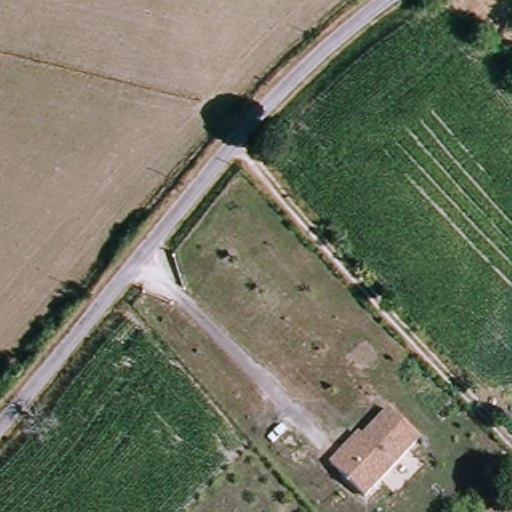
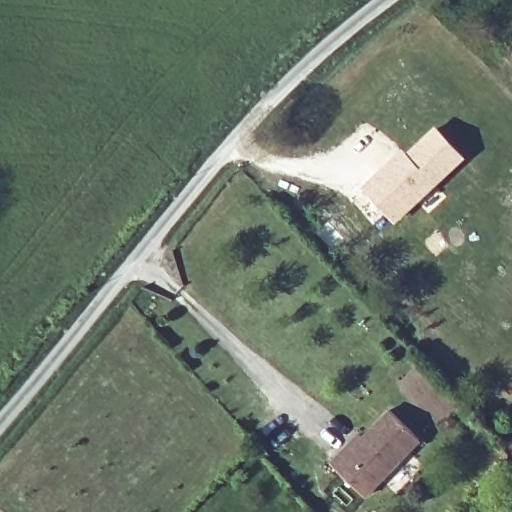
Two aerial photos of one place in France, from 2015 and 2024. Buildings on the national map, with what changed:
new [(409,153),(437,126),(465,156),(436,181),(448,195),(430,211),(418,198),(398,218),(365,184),(406,150),(409,153)]
unchanged [(367,497),(330,460),(357,431),(363,435),(388,408),(422,440),(367,497)]

